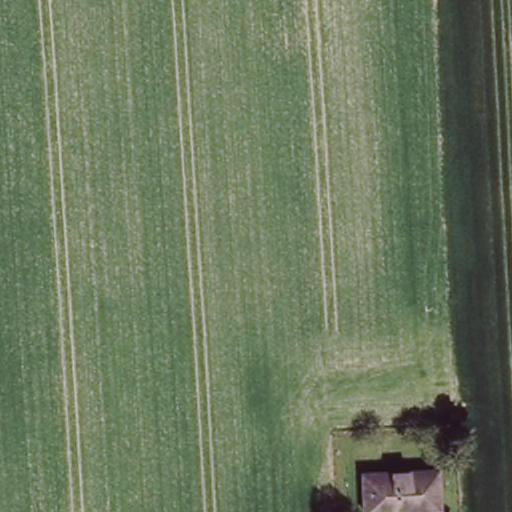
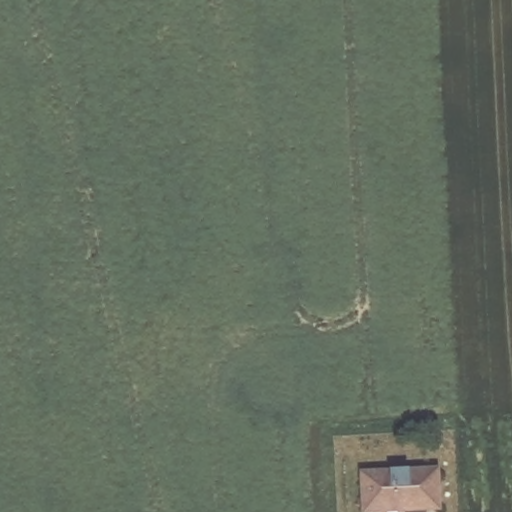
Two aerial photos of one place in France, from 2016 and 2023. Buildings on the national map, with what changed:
unchanged [(432,466),(435,506),(367,511),(365,471),(432,466)]

